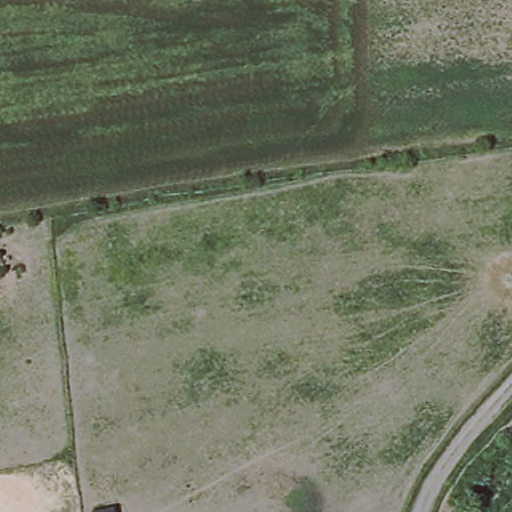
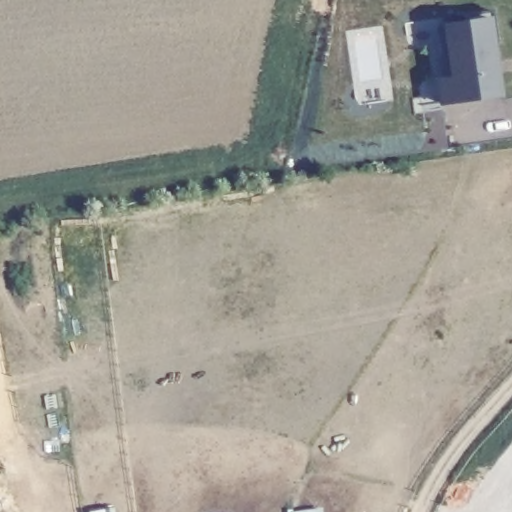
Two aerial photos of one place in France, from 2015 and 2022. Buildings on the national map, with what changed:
new [(467,22),(465,13),(496,10),(500,41),(495,42),(497,58),(491,59),(491,75),(501,82),(503,92),(491,94),(485,87),(479,89),(481,97),(443,101),(441,78),(453,77),(450,49),(443,50),(438,26),(467,22)]
unchanged [(114,512),(95,512),(113,507),(114,512)]

